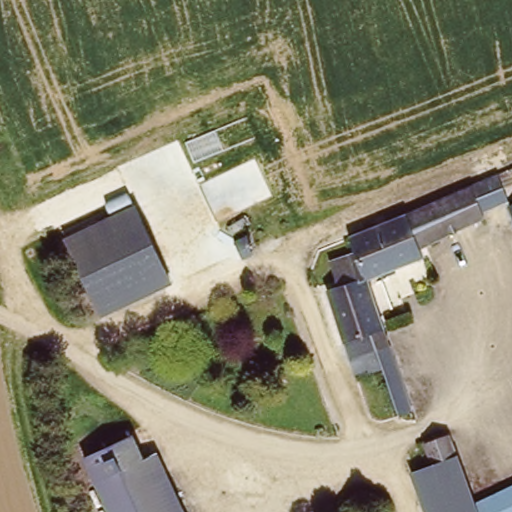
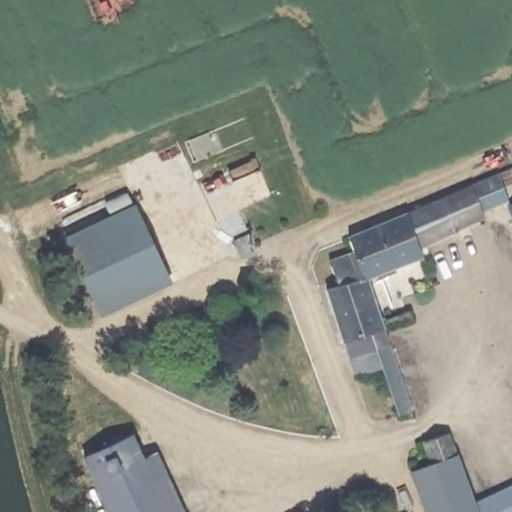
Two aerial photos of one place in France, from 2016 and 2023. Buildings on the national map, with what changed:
unchanged [(347,363),(324,301),(320,292),(320,290),(340,281),(332,257),(354,249),(350,237),(493,179),(502,202),(471,215),(473,220),(412,244),(415,253),(362,275),(389,348),(347,363)]
unchanged [(135,209),(162,282),(94,308),(67,235),(135,209)]
unchanged [(251,242),(229,250),(220,227),(242,219),(251,242)]
unchanged [(412,410),(395,416),(378,367),(352,377),(347,363),(389,348),(412,410)]
unchanged [(80,461),(134,434),(147,458),(159,452),(187,512),(101,512),(80,461)]
unchanged [(399,453),(425,443),(450,434),(457,452),(475,502),(478,512),(423,512),(407,472),(399,453)]
unchanged [(475,502),(512,487),(512,512),(478,512),(475,502)]

